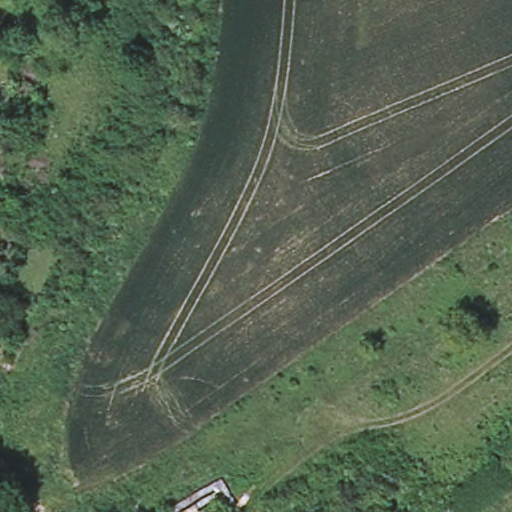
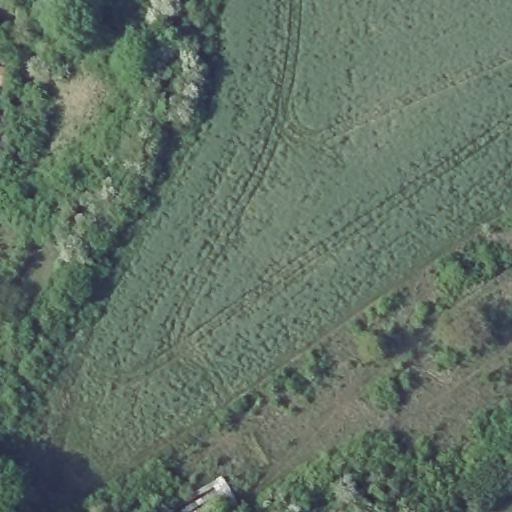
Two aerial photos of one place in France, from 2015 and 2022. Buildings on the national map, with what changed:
unchanged [(224,505),(221,500),(201,512),(167,512),(176,506),(173,500),(222,467),(238,498),(224,505)]

